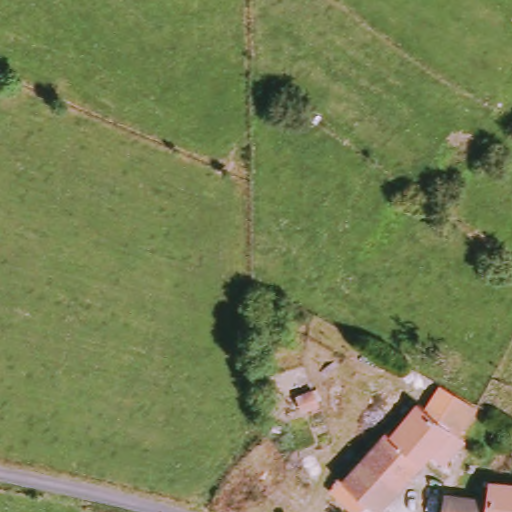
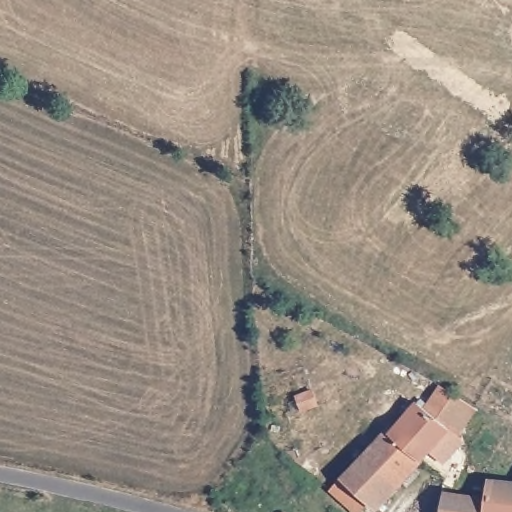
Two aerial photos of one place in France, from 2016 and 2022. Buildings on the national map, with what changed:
unchanged [(469,447),(453,465),(442,453),(432,462),(407,433),(433,406),(447,420),(461,434),(472,442),(469,447)]
unchanged [(400,429),(407,433),(432,462),(381,509),(368,491),(352,480),(400,429)]
unchanged [(494,502),(495,487),(512,488),(512,512),(493,512),(494,502)]
unchanged [(455,497),(494,502),(493,512),(453,512),(455,497)]

